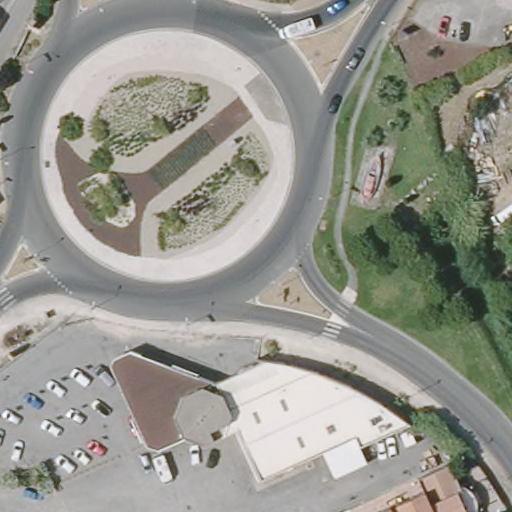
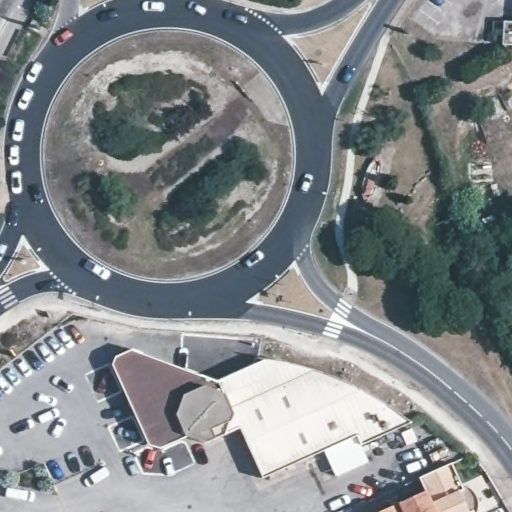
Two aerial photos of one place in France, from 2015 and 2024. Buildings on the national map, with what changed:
unchanged [(411,424),(361,447),(356,437),(324,453),(262,481),(239,429),(205,444),(184,437),(159,448),(149,445),(113,366),(116,359),(134,352),(216,383),(266,361),(286,364),(313,371),(331,378),(358,389),(382,403),(411,424)]
unchanged [(361,447),(368,463),(335,478),(324,453),(356,437),(361,447)]
unchanged [(467,487),(469,488),(472,491),(476,496),(477,498),(478,500),(478,504),(479,508),(478,512),(433,512),(424,493),(418,479),(451,464),(461,485),(467,487)]
unchanged [(394,507),(424,493),(433,512),(397,512),(394,507)]
unchanged [(394,507),(397,512),(382,512),(394,507)]

